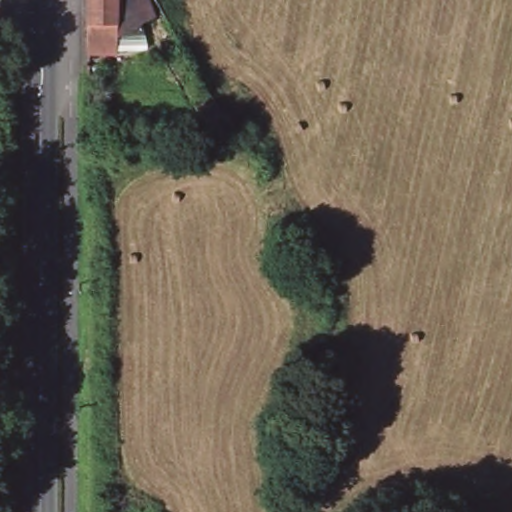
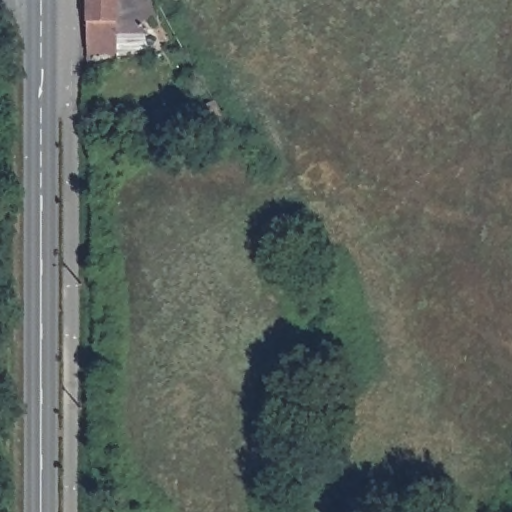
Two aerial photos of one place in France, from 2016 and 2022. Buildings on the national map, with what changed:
unchanged [(145,2),(151,23),(122,23),(122,44),(93,43),(93,0),(144,0),(145,2)]
unchanged [(208,92),(229,126),(206,125),(192,102),(208,92)]

